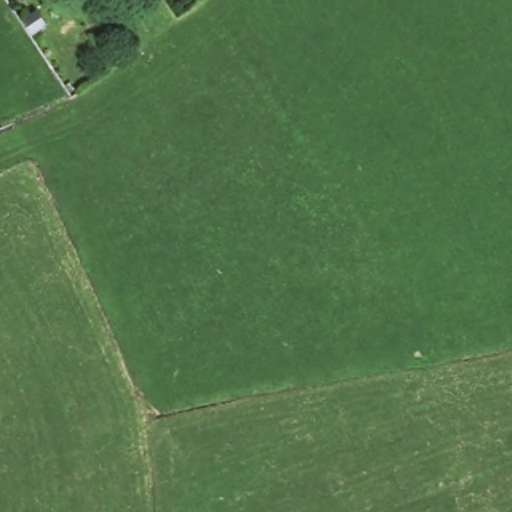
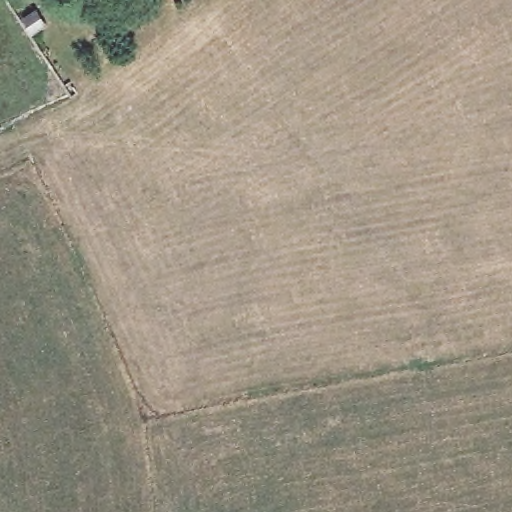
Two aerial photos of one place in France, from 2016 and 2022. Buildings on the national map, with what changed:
unchanged [(38,39),(29,26),(41,17),(50,31),(38,39)]

